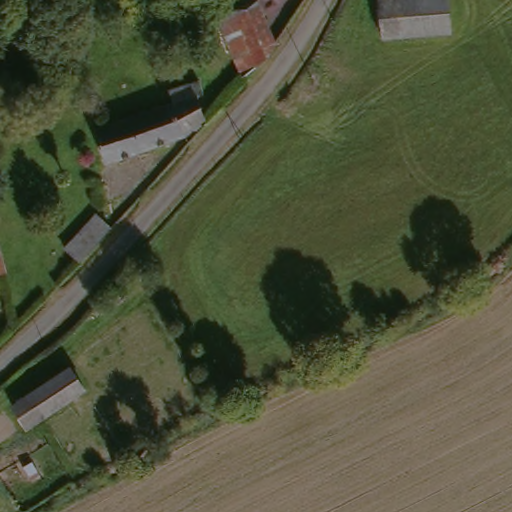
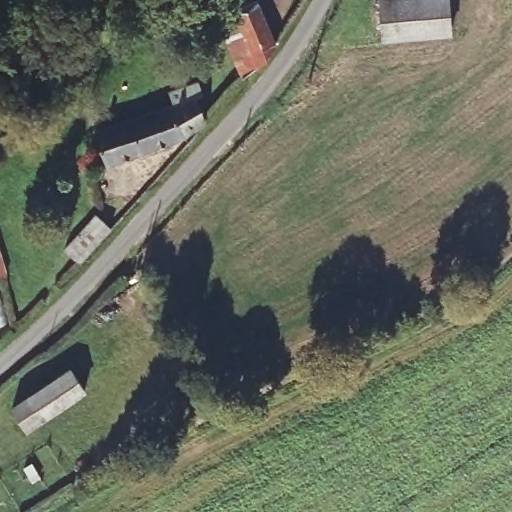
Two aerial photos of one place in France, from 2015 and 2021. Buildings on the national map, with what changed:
unchanged [(382,0),(448,0),(451,35),(383,38),(382,0)]
unchanged [(252,69),(239,81),(216,25),(256,7),(272,43),(252,69)]
unchanged [(201,82),(205,99),(199,101),(206,118),(186,136),(175,106),(170,92),(201,82)]
unchanged [(107,163),(96,130),(175,106),(186,136),(107,163)]
unchanged [(65,248),(97,216),(112,230),(81,264),(65,248)]
unchanged [(7,275),(0,277),(0,248),(7,275)]
unchanged [(14,408),(72,369),(87,391),(28,430),(14,408)]

